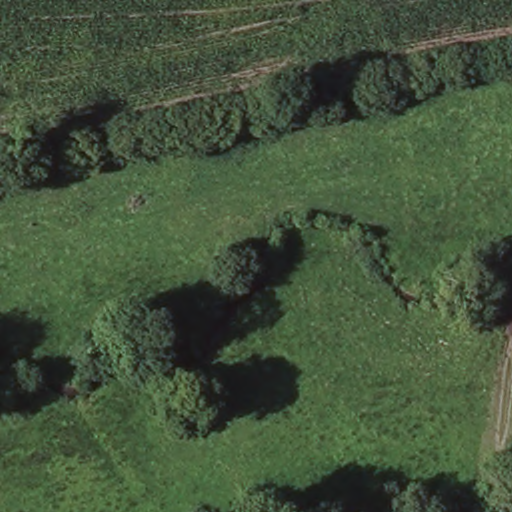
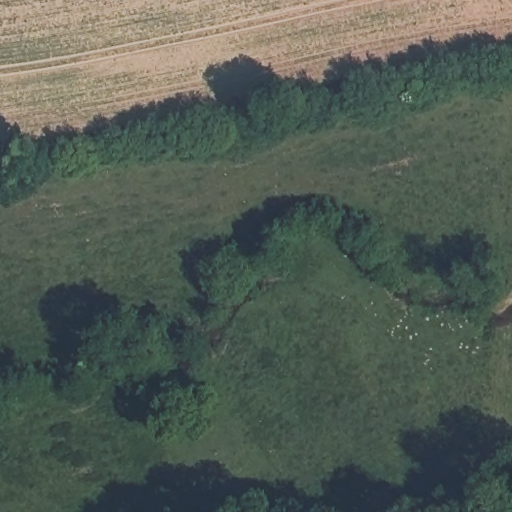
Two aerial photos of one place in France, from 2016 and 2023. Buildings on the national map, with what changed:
[]

